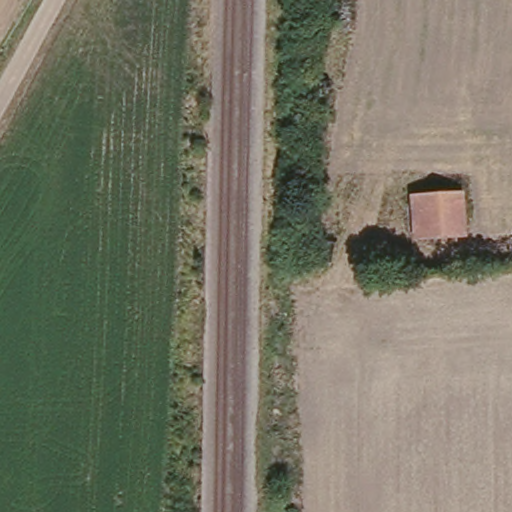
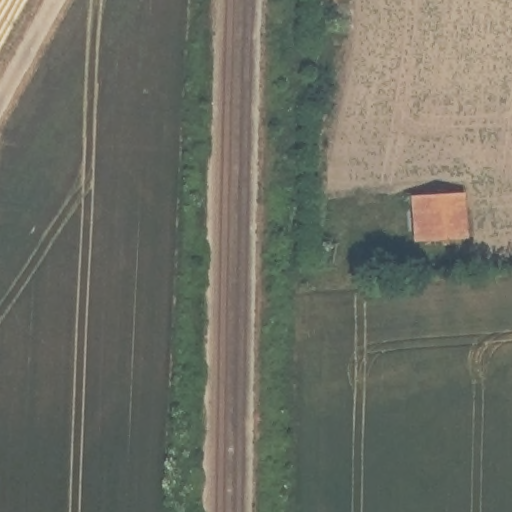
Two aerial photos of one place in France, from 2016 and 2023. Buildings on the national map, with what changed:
unchanged [(461,235),(412,233),(413,190),(463,191),(477,192),(477,236),(461,235)]

